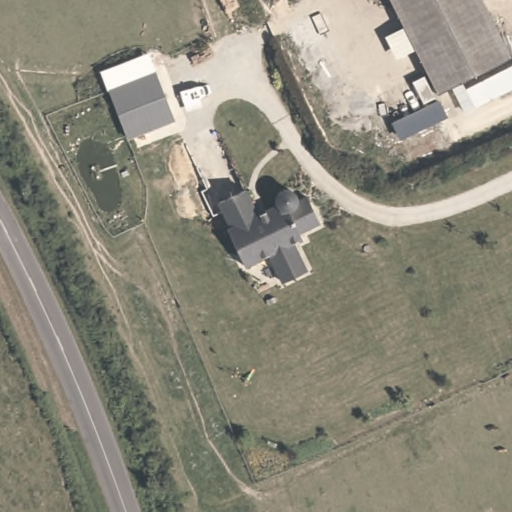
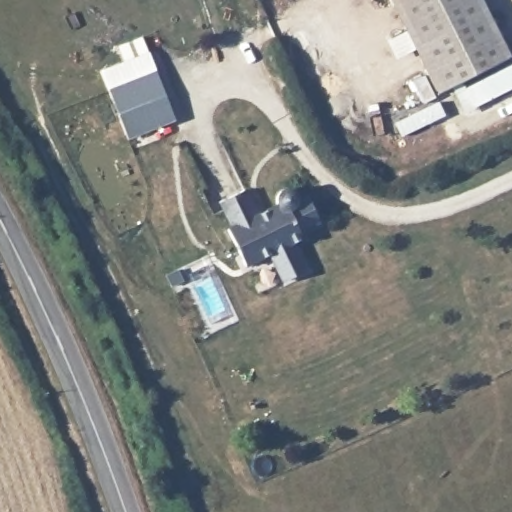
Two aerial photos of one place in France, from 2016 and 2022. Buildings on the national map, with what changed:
unchanged [(509,57),(437,94),(389,0),(480,0),(509,57)]
unchanged [(174,121),(127,138),(107,91),(98,70),(147,50),(156,72),(174,121)]
unchanged [(465,89),(512,65),(512,91),(463,113),(450,87),(462,81),(465,89)]
unchanged [(244,190),(256,214),(277,204),(276,200),(276,195),(278,192),(282,190),(287,189),(290,190),(294,192),(296,195),(296,199),(296,201),(306,196),(319,222),(298,232),(301,238),(292,243),(305,270),(281,281),(268,254),(245,266),(227,229),(230,227),(218,202),(244,190)]

